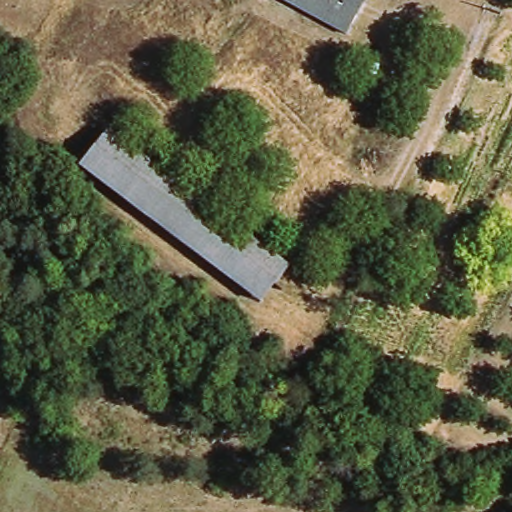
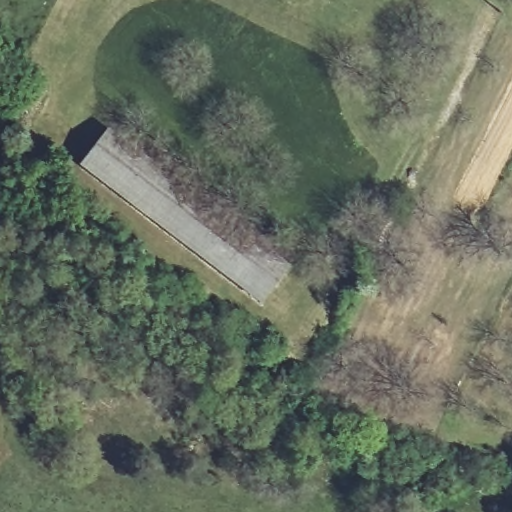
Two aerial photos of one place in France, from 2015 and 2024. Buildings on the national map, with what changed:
demolished [(287,0),(369,0),(350,34),(287,0)]
unchanged [(268,301),(85,163),(109,130),(292,268),(268,301)]

